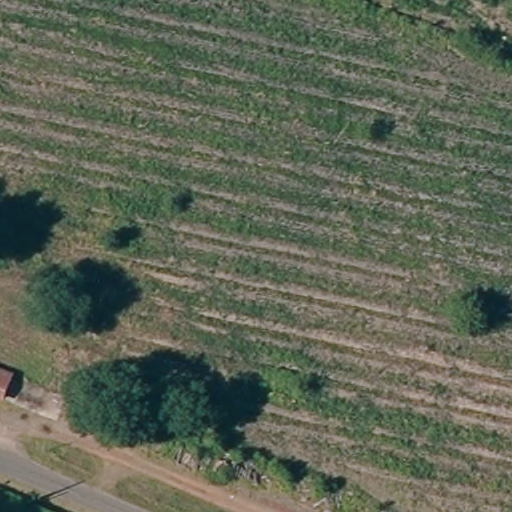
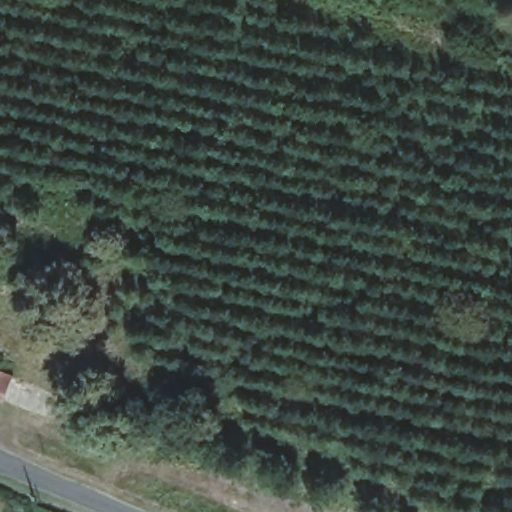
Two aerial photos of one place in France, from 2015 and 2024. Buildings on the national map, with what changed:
unchanged [(0,403),(0,369),(11,373),(3,405),(0,403)]

